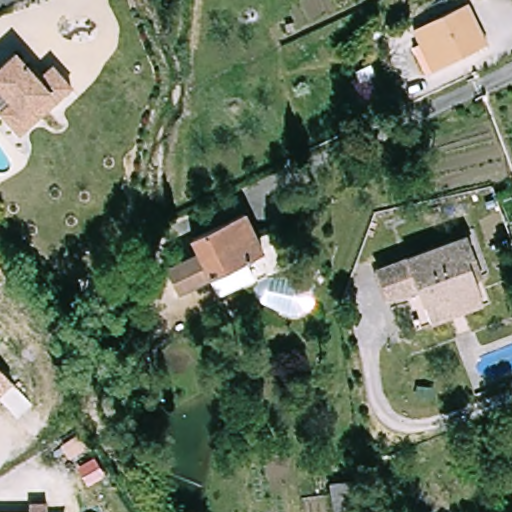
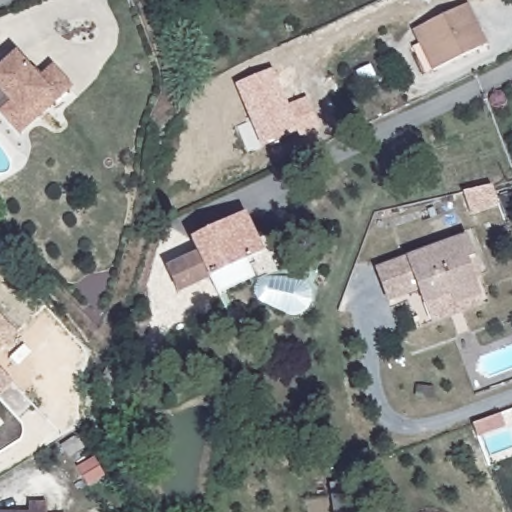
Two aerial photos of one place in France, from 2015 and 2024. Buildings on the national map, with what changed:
unchanged [(490,48),(436,73),(417,31),(471,6),(490,48)]
unchanged [(6,115),(17,105),(0,85),(0,74),(23,54),(39,73),(43,70),(49,77),(60,68),(79,89),(37,126),(25,136),(6,115)]
new [(300,138),(298,131),(262,146),(235,85),(273,69),(288,106),(307,98),(321,130),(300,138)]
new [(512,190),(512,211),(505,214),(498,195),(512,190)]
unchanged [(267,248),(248,257),(253,267),(217,285),(212,275),(182,290),(170,265),(201,250),(195,237),(249,211),(267,248)]
unchanged [(485,274),(478,276),(487,301),(436,319),(424,286),(393,298),(381,266),(470,234),(485,274)]
demolished [(135,312),(149,319),(138,343),(124,336),(135,312)]
new [(18,334),(0,351),(0,315),(18,334)]
unchanged [(11,380),(0,391),(0,368),(11,380)]
unchanged [(364,512),(334,512),(331,487),(360,483),(364,512)]
unchanged [(30,505),(47,505),(47,512),(30,512),(30,505)]

